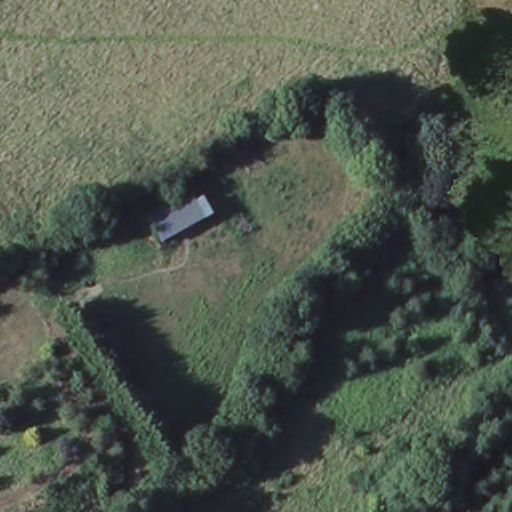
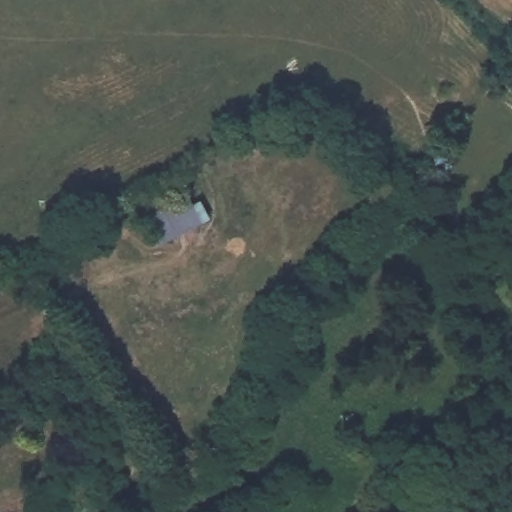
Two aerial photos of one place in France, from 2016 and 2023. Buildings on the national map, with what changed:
unchanged [(157,249),(140,217),(186,194),(191,205),(204,199),(210,220),(157,249)]

